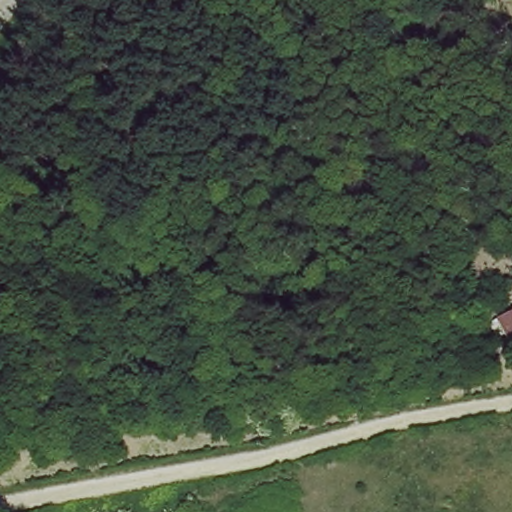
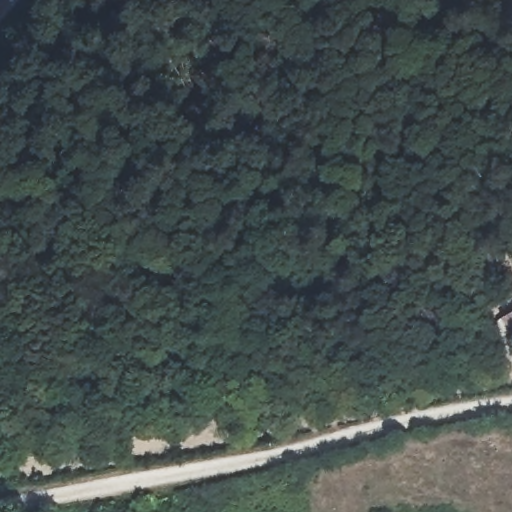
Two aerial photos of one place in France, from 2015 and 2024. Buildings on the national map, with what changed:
[]

